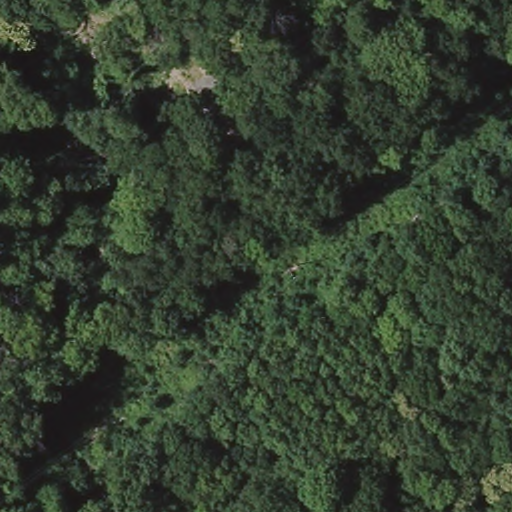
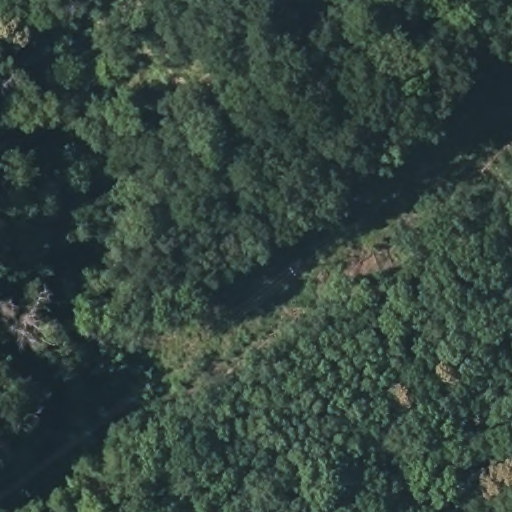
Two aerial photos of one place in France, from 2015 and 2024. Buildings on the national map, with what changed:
unchanged [(221,119),(191,97),(205,77),(234,100),(221,119)]

